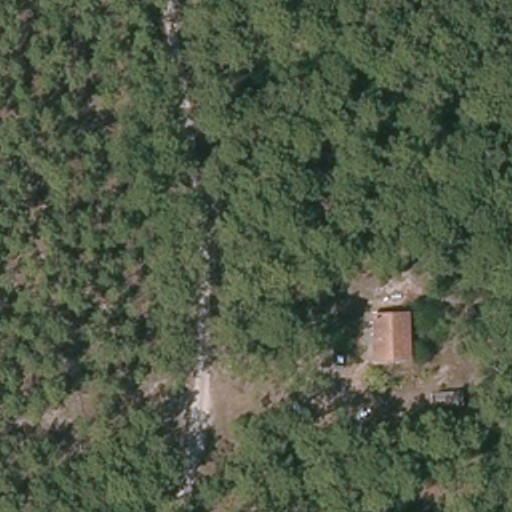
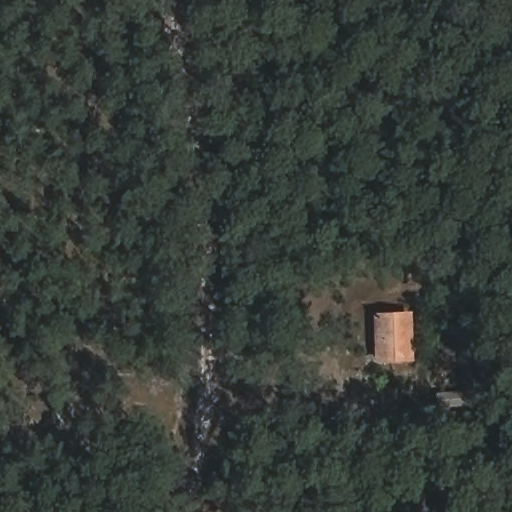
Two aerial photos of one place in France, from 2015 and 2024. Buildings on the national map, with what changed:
unchanged [(375,359),(372,310),(412,309),(415,359),(375,359)]

